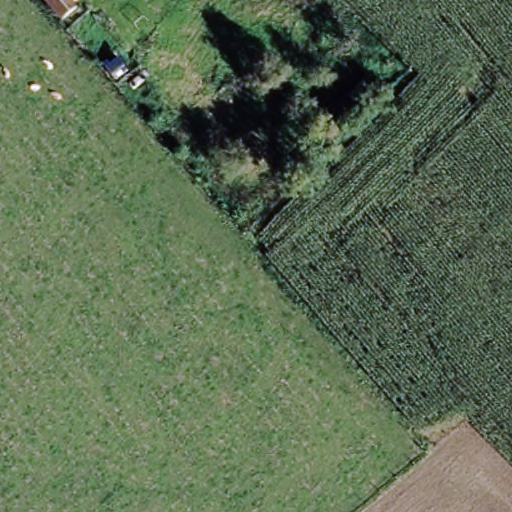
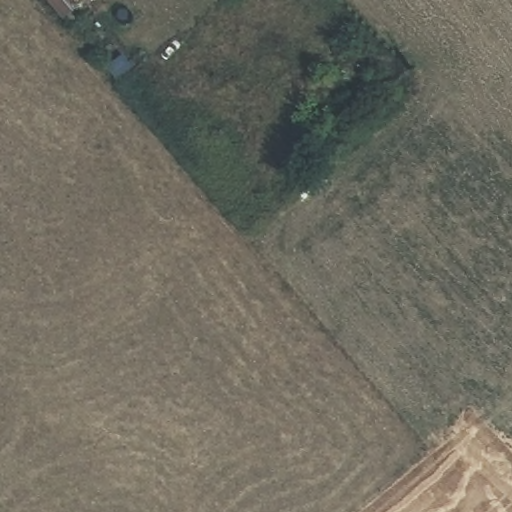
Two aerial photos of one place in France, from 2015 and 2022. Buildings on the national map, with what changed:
unchanged [(73,9),(58,22),(40,0),(65,0),(73,9)]
unchanged [(386,78),(363,104),(349,88),(371,69),(386,78)]

